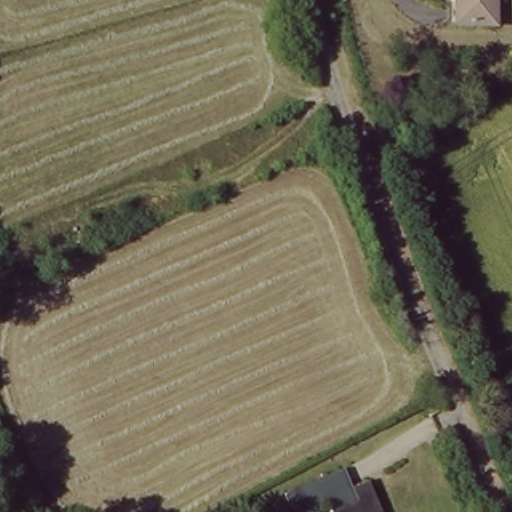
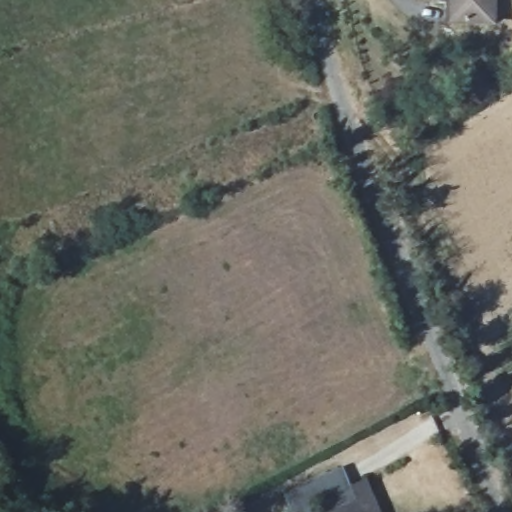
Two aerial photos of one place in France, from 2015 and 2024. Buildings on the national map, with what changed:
unchanged [(452,0),(492,0),(494,23),(454,26),(452,0)]
unchanged [(310,485),(336,472),(344,491),(362,484),(374,512),(320,512),(322,512),(310,485)]

